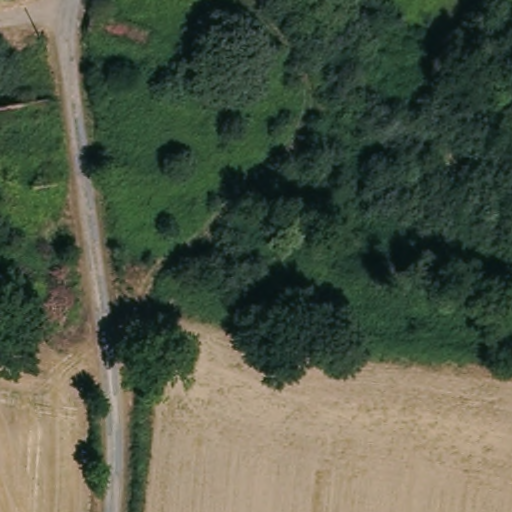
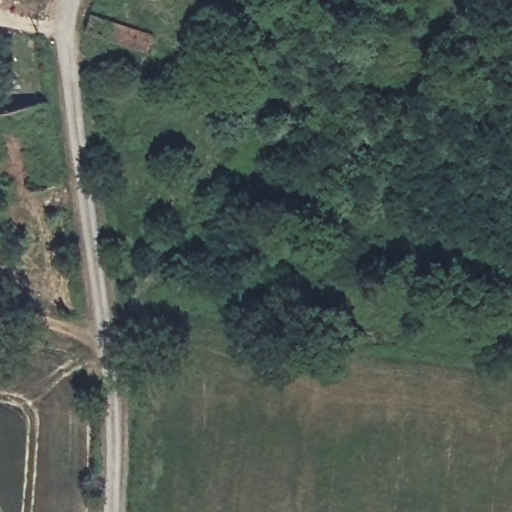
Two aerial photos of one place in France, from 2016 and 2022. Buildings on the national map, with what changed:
unchanged [(84,12),(109,20),(145,32),(140,49),(80,32),(84,12)]
unchanged [(0,252),(0,250),(1,250),(0,252)]

